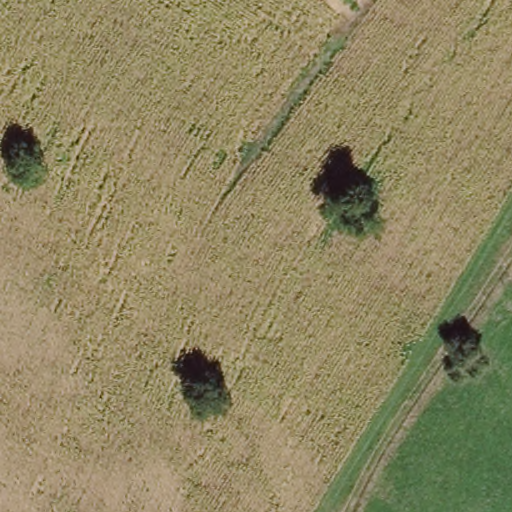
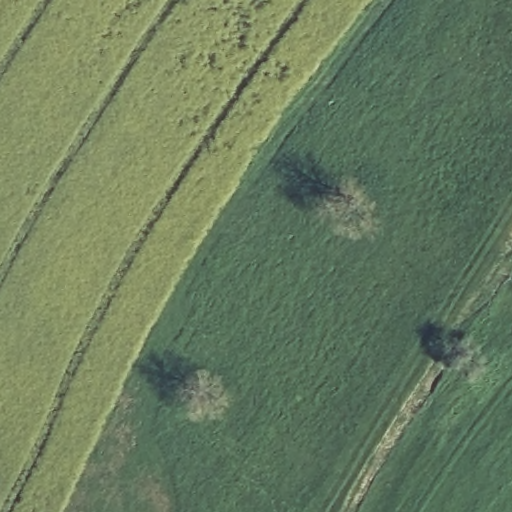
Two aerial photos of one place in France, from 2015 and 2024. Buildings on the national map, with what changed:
[]

